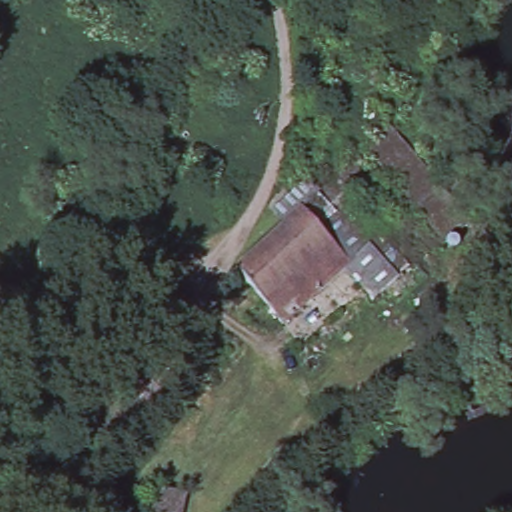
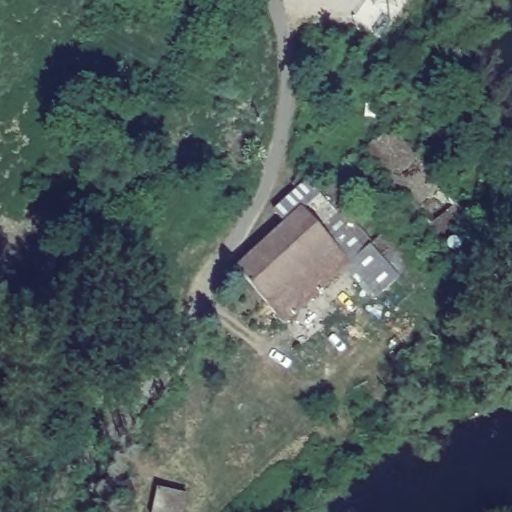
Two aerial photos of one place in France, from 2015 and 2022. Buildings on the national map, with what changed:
unchanged [(402,105),(393,112),(354,62),(360,52),(402,105)]
unchanged [(447,244),(365,150),(390,129),(471,222),(447,244)]
unchanged [(365,242),(380,230),(410,263),(399,275),(374,300),(344,272),(286,327),(232,268),(279,224),(268,209),(305,176),(365,242)]
unchanged [(190,492),(186,512),(147,512),(153,486),(190,492)]

